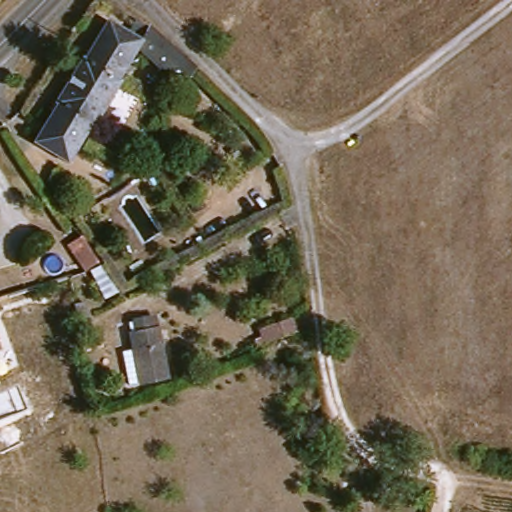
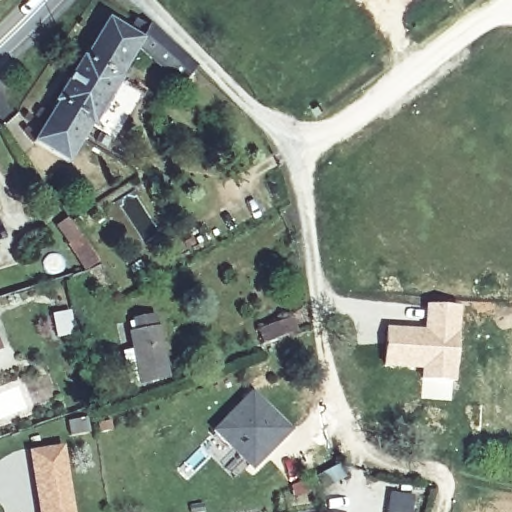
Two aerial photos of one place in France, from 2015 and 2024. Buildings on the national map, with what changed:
unchanged [(103,25),(138,44),(146,32),(193,72),(181,86),(135,55),(116,82),(118,84),(67,166),(33,148),(57,107),(55,105),(79,62),(80,62),(103,25)]
new [(97,263),(83,271),(57,227),(72,217),(97,263)]
demolished [(85,260),(71,268),(60,249),(60,254),(54,245),(59,242),(70,237),(85,260)]
new [(420,372),(381,368),(385,325),(422,328),(424,303),(460,306),(455,382),(452,400),(420,398),(420,379),(420,372)]
unchanged [(142,381),(127,336),(144,331),(139,320),(151,316),(169,375),(142,381)]
new [(258,330),(293,317),(298,330),(264,343),(258,330)]
demolished [(261,359),(256,343),(288,332),(294,348),(261,359)]
new [(252,393),(290,430),(253,468),(250,465),(234,479),(215,460),(230,445),(214,430),(252,393)]
new [(26,453),(63,446),(75,512),(41,512),(26,453)]

